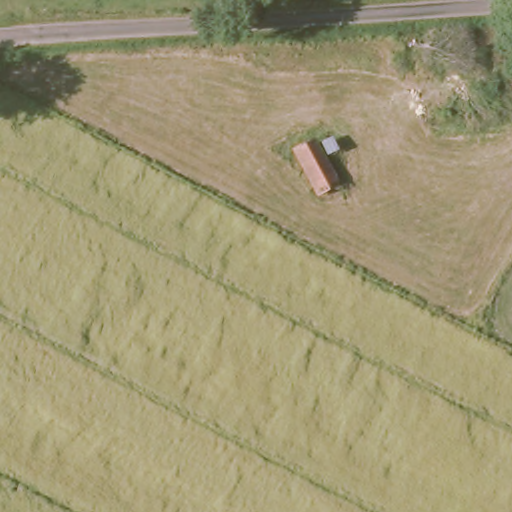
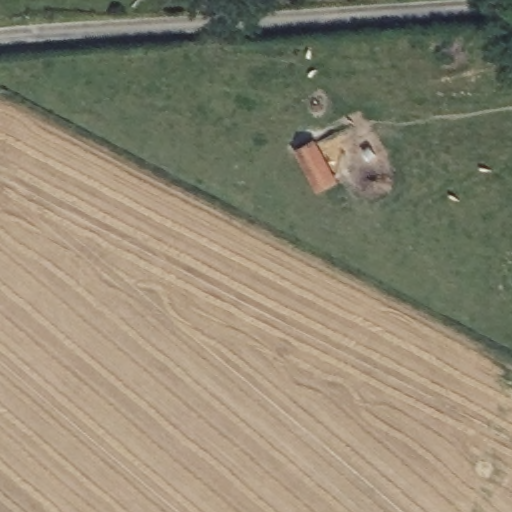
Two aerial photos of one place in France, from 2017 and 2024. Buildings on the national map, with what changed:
unchanged [(320,196),(295,152),(317,141),(345,185),(320,196)]

